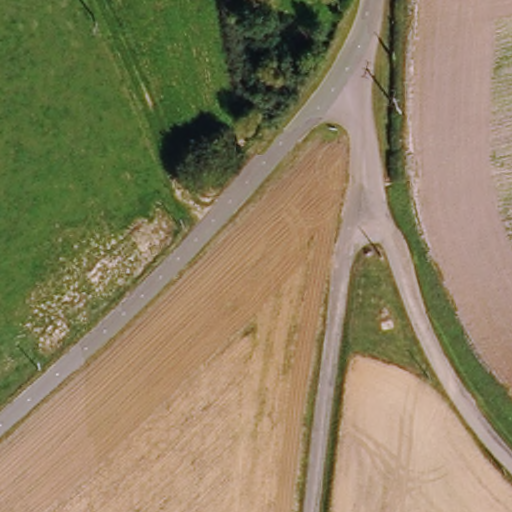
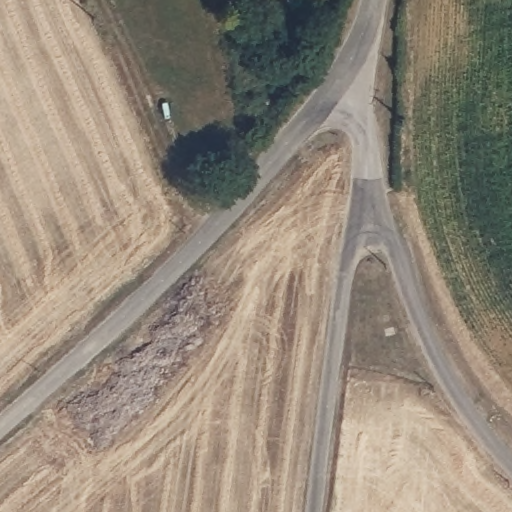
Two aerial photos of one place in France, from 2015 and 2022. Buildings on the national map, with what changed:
[]

